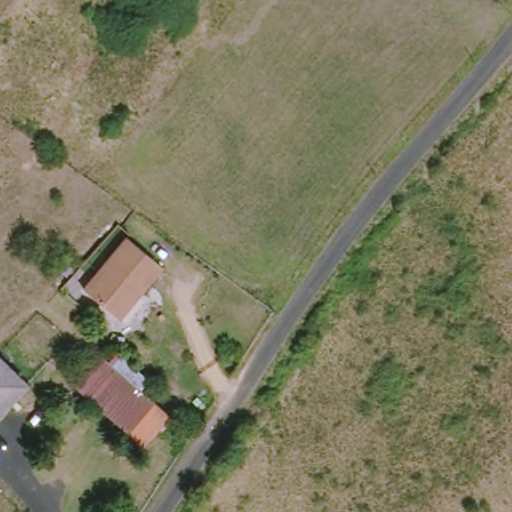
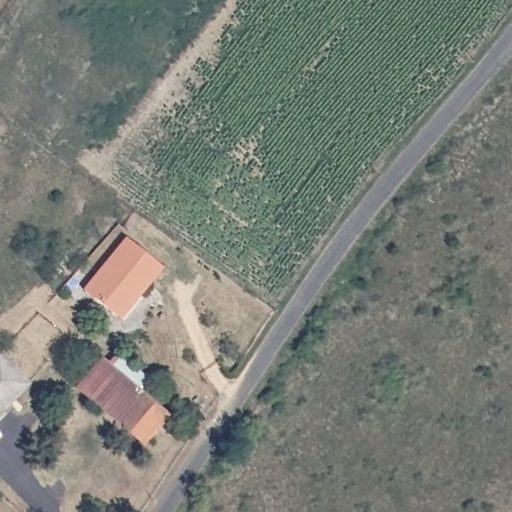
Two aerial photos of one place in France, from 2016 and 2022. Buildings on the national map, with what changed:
unchanged [(134,296),(130,292),(107,317),(88,301),(97,291),(85,281),(121,240),(156,270),(134,296)]
unchanged [(0,411),(0,354),(28,384),(0,411)]
unchanged [(135,448),(69,390),(93,361),(159,417),(135,448)]

